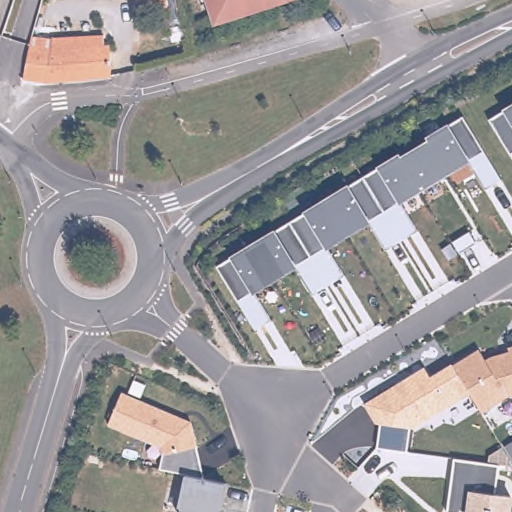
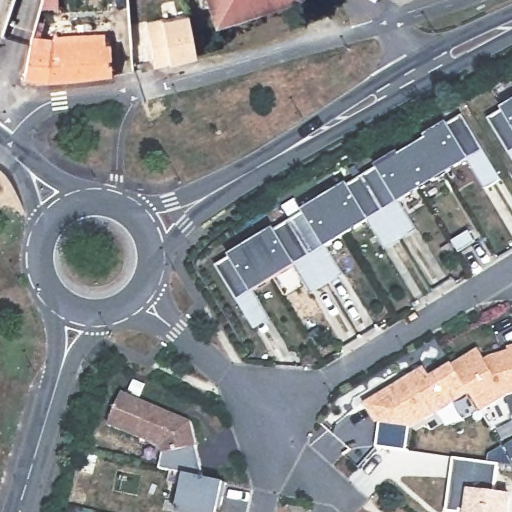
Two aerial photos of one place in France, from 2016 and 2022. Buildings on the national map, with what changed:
demolished [(168,10),(141,12),(140,0),(167,0),(168,10)]
unchanged [(220,20),(219,16),(214,17),(215,19),(213,19),(207,0),(282,0),(220,20)]
new [(189,15),(196,56),(155,66),(147,21),(189,15)]
unchanged [(30,47),(54,49),(55,39),(105,36),(105,46),(111,46),(112,77),(95,80),(65,82),(48,83),(38,82),(24,81),(30,47)]
unchanged [(488,118),(503,108),(512,103),(512,157),(488,118)]
unchanged [(486,189),(470,162),(401,204),(417,230),(386,249),(370,222),(327,248),(344,275),(311,293),(298,267),(254,293),(271,320),(256,329),(237,300),(216,266),(230,257),(274,229),(303,210),(347,184),(376,165),(398,152),(400,155),(427,140),(424,135),(448,124),(462,116),(501,180),(486,189)]
unchanged [(424,365),(431,375),(480,346),(486,357),(508,351),(507,346),(512,344),(512,395),(509,397),(480,412),(470,394),(420,426),(377,424),(363,402),(424,365)]
unchanged [(160,469),(164,451),(107,427),(121,393),(191,421),(204,477),(224,481),(218,512),(178,512),(176,512),(184,472),(160,469)]
unchanged [(410,426),(407,451),(378,447),(382,424),(410,426)]
unchanged [(496,489),(511,491),(508,512),(446,512),(453,457),(499,463),(496,489)]

